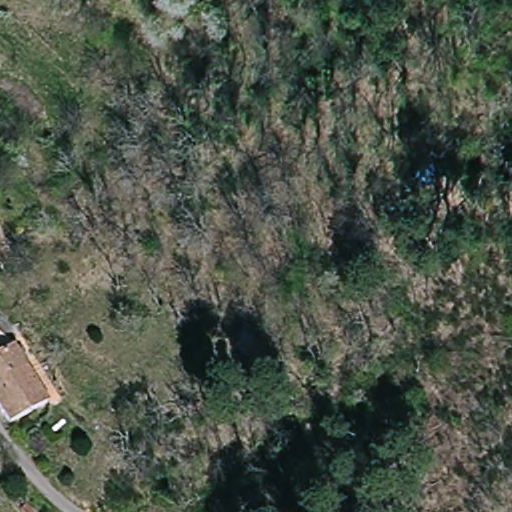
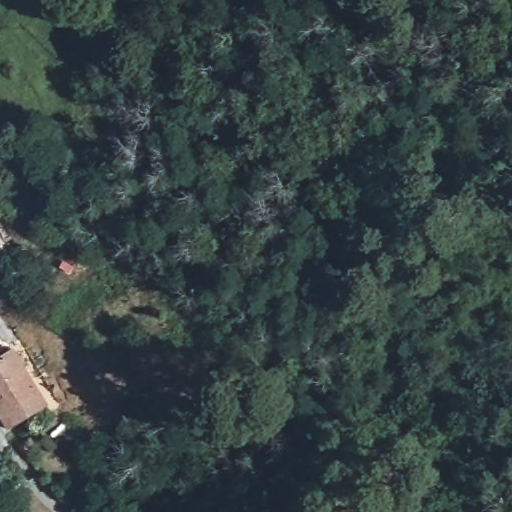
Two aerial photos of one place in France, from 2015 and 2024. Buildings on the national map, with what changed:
unchanged [(14,344),(52,404),(8,433),(1,424),(0,423),(0,341),(10,347),(14,344)]

